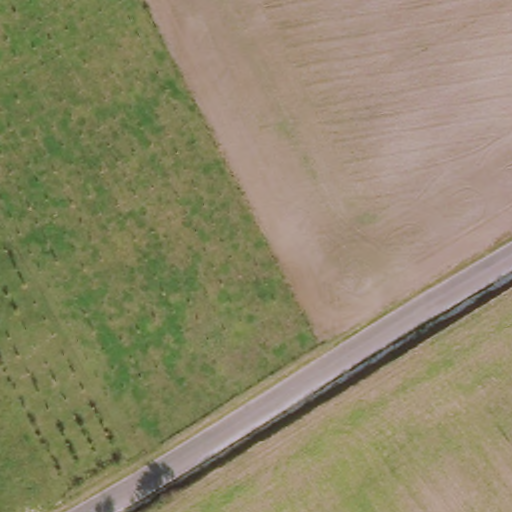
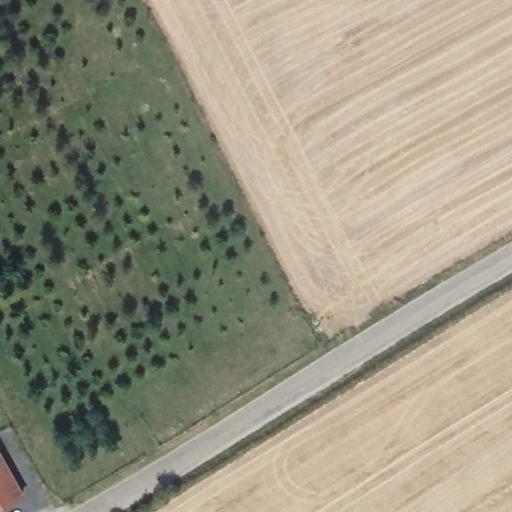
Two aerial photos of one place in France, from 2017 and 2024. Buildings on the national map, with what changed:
new [(27,496),(0,511),(0,448),(27,496)]

